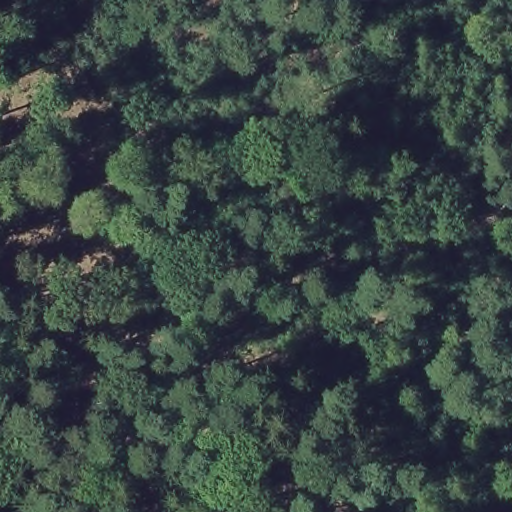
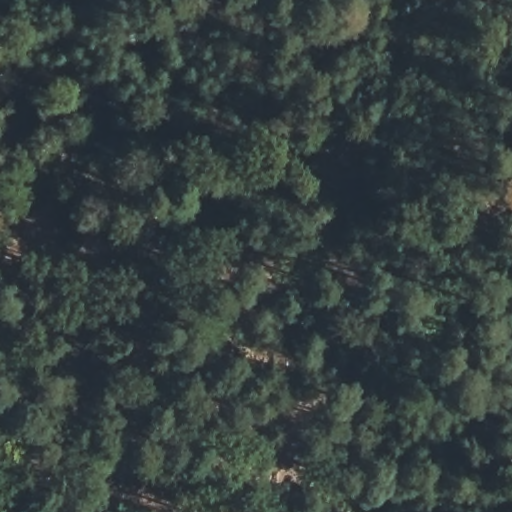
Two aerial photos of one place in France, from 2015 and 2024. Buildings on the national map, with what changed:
[]

